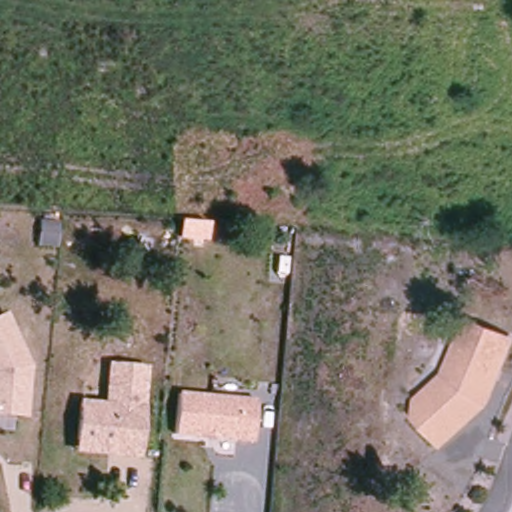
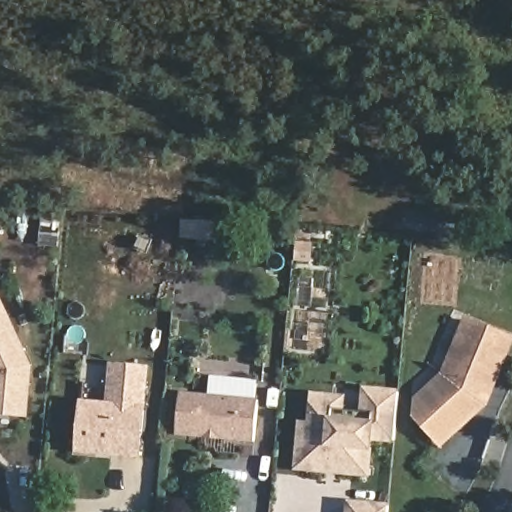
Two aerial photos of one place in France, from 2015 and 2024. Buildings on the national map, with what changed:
unchanged [(9,313),(31,366),(26,418),(0,417),(0,318),(9,313)]
unchanged [(512,336),(512,349),(488,406),(441,449),(413,420),(415,396),(441,375),(464,317),(512,336)]
unchanged [(110,364),(150,366),(142,459),(77,454),(82,400),(105,401),(110,364)]
new [(294,471),(298,422),(307,422),(308,404),(309,393),(346,395),(344,410),(359,411),(361,387),(398,390),(394,443),(373,442),(371,452),(370,478),(294,471)]
unchanged [(178,436),(182,394),(258,400),(253,443),(178,436)]
new [(345,512),(346,500),(388,503),(388,512),(345,512)]

